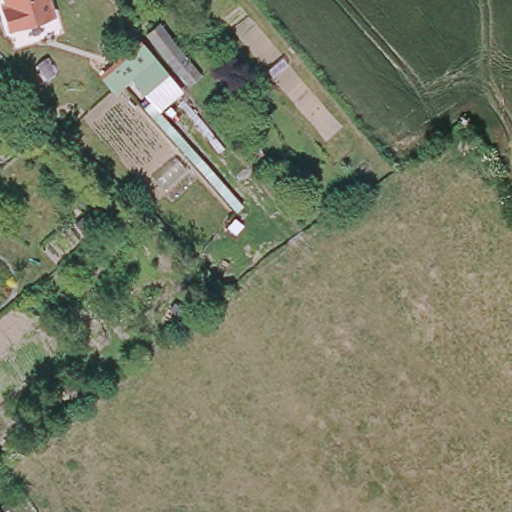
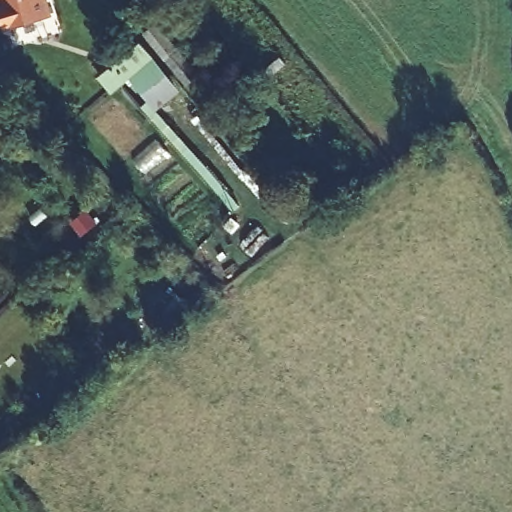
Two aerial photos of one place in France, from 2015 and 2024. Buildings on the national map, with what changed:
unchanged [(7,34),(0,9),(5,8),(3,0),(44,0),(50,22),(7,34)]
unchanged [(155,42),(160,47),(132,71),(117,55),(146,30),(155,42)]
unchanged [(182,37),(205,64),(188,81),(164,52),(182,37)]

